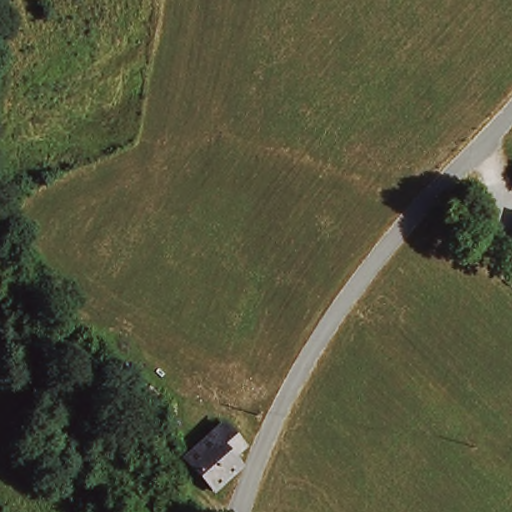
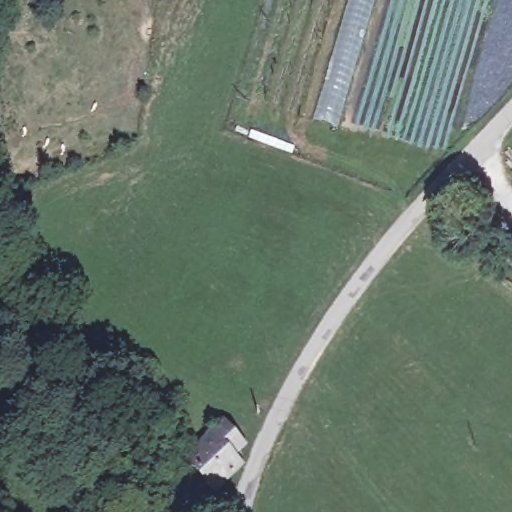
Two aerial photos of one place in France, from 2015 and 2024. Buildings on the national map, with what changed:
new [(338,130),(313,122),(350,0),(377,0),(338,130)]
unchanged [(212,475),(199,458),(190,447),(212,427),(208,422),(220,412),(238,432),(242,437),(230,447),(237,455),(212,475)]

